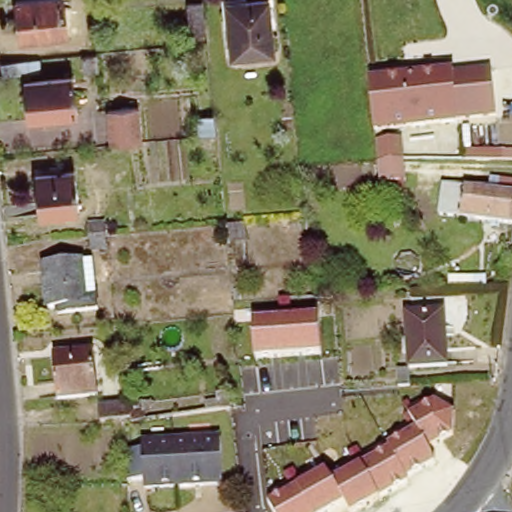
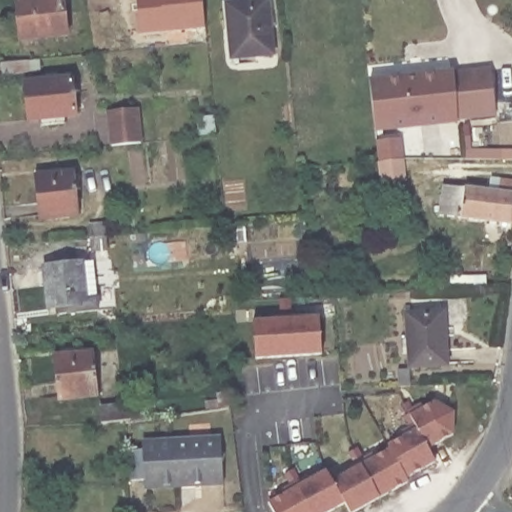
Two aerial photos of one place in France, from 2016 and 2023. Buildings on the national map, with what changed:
unchanged [(15,1),(22,0),(64,0),(67,34),(19,39),(15,1)]
new [(138,35),(135,0),(201,0),(204,29),(138,35)]
unchanged [(225,1),(234,0),(267,0),(272,50),(230,55),(225,1)]
unchanged [(83,57),(94,56),(95,71),(85,72),(83,57)]
unchanged [(43,64),(45,76),(7,79),(6,67),(43,64)]
unchanged [(453,67),(453,69),(491,67),(497,112),(458,115),(458,117),(374,125),(368,76),(453,67)]
unchanged [(30,87),(76,82),(80,117),(33,122),(30,87)]
unchanged [(110,142),(106,107),(136,105),(139,140),(110,142)]
unchanged [(200,136),(198,119),(210,118),(211,136),(200,136)]
unchanged [(400,141),(404,170),(380,173),(376,143),(400,141)]
unchanged [(35,176),(72,172),(75,216),(38,219),(35,176)]
unchanged [(440,212),(442,195),(444,181),(466,183),(491,186),(493,172),(512,175),(512,220),(440,212)]
unchanged [(90,250),(90,239),(88,227),(101,225),(102,238),(104,249),(90,250)]
unchanged [(92,302),(52,307),(51,302),(43,302),(39,262),(87,257),(92,302)]
unchanged [(441,306),(446,359),(407,362),(403,309),(441,306)]
unchanged [(251,320),(317,316),(321,355),(255,357),(251,320)]
unchanged [(58,352),(97,348),(101,393),(62,397),(58,352)]
unchanged [(225,408),(222,408),(218,409),(216,395),(227,392),(230,406),(230,407),(225,408)]
unchanged [(328,512),(272,512),(267,502),(325,471),(332,480),(387,450),(385,444),(401,436),(398,430),(415,422),(411,413),(438,402),(455,413),(451,436),(429,447),(435,459),(403,476),(406,482),(352,512),(347,512),(342,504),(328,512)]
unchanged [(140,422),(128,425),(127,420),(99,425),(96,411),(120,407),(125,406),(127,415),(142,412),(143,422),(140,422)]
unchanged [(227,434),(231,478),(153,485),(152,475),(135,477),(135,470),(131,442),(227,434)]
unchanged [(508,497),(512,481),(512,498),(508,497)]

